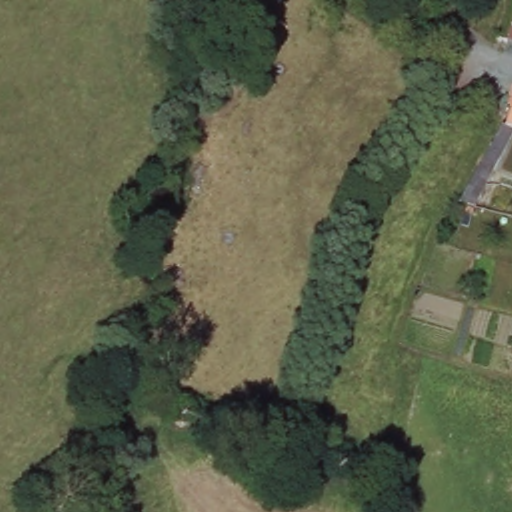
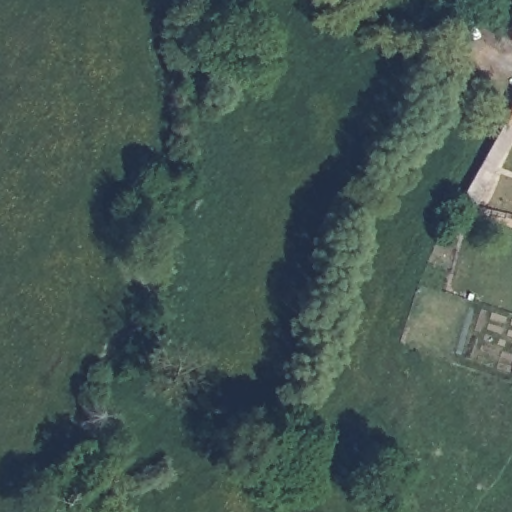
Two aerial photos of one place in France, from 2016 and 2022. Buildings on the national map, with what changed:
unchanged [(477,161),(482,153),(498,124),(501,119),(508,98),(512,99),(512,136),(490,168),(477,161)]

